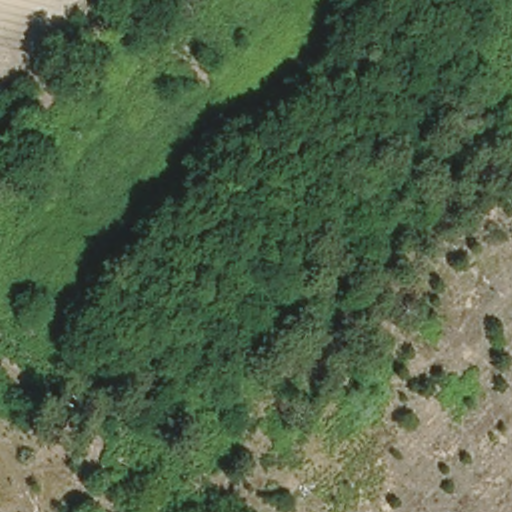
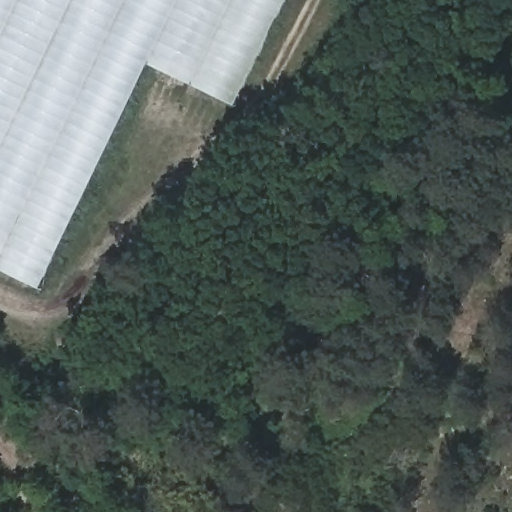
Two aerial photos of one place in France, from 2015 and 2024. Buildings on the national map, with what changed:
new [(0,0),(281,0),(232,101),(144,61),(35,287),(0,269),(0,0)]

